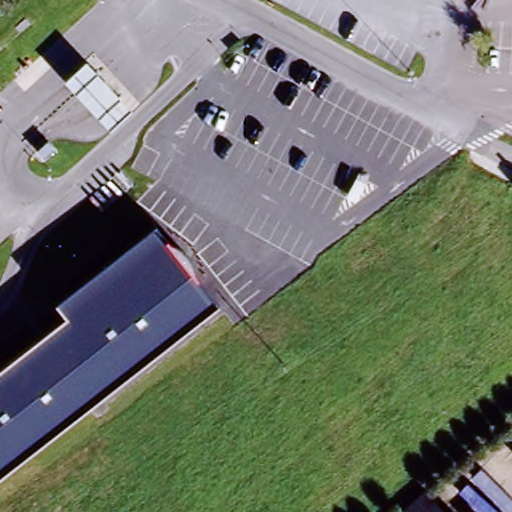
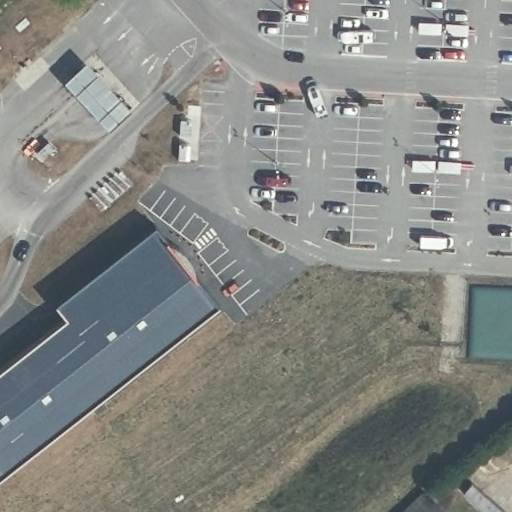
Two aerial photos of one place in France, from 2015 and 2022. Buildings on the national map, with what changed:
unchanged [(132,107),(106,131),(65,84),(88,63),(132,107)]
unchanged [(0,478),(0,370),(68,318),(56,305),(155,227),(218,309),(0,478)]
unchanged [(400,512),(426,488),(449,512),(400,512)]

